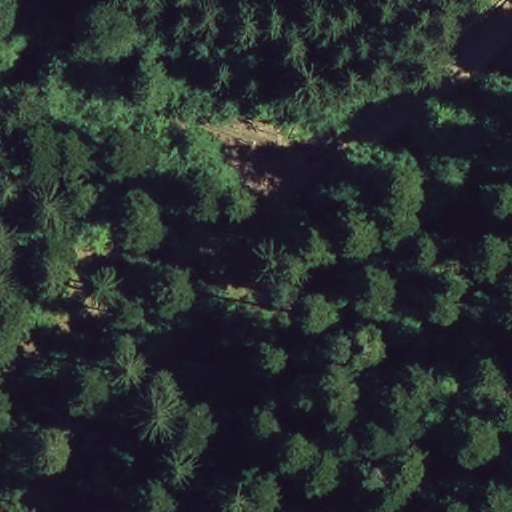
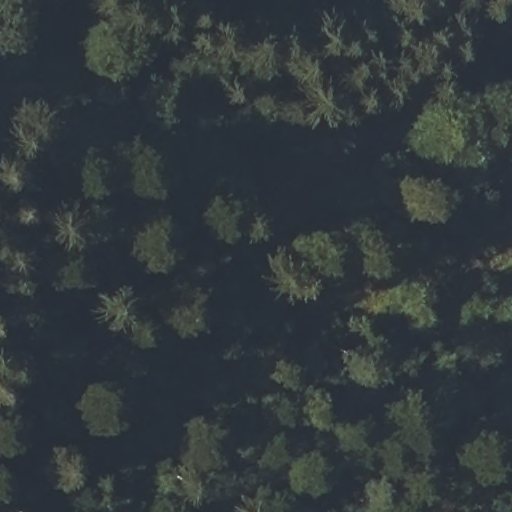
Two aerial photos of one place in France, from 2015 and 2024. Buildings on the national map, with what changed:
[]

